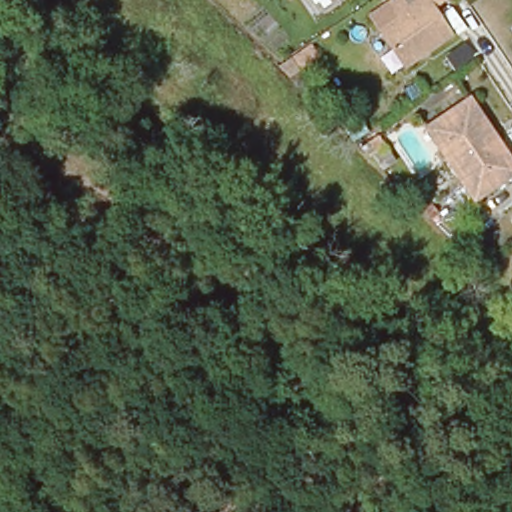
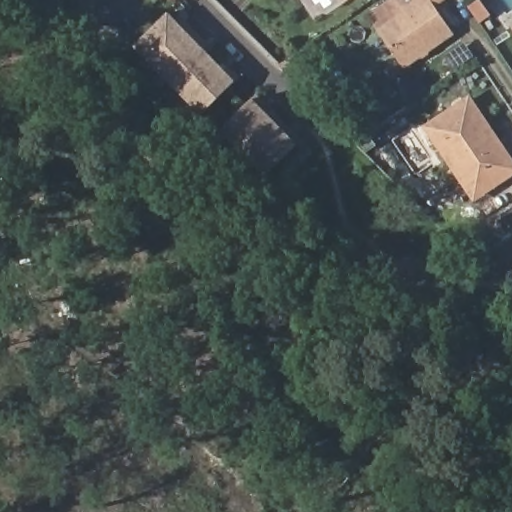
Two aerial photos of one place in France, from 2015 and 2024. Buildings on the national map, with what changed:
unchanged [(451,31),(405,63),(379,27),(403,10),(396,0),(438,0),(432,5),(451,31)]
new [(167,10),(178,22),(182,19),(192,29),(155,66),(133,44),(164,14),(167,10)]
new [(199,44),(211,55),(177,89),(155,66),(192,29),(203,40),(199,44)]
unchanged [(292,60),(312,46),(320,56),(299,70),(292,60)]
new [(226,64),(237,75),(200,111),(177,89),(211,55),(222,67),(226,64)]
unchanged [(291,75),(282,66),(292,60),(300,71),(291,75)]
new [(255,92),(267,104),(277,115),(241,150),(219,127),(250,96),(255,92)]
unchanged [(472,201),(425,130),(467,102),(478,119),(503,155),(512,169),(512,175),(472,201)]
new [(277,115),(287,125),(299,137),(295,142),(263,172),(241,150),(277,115)]

